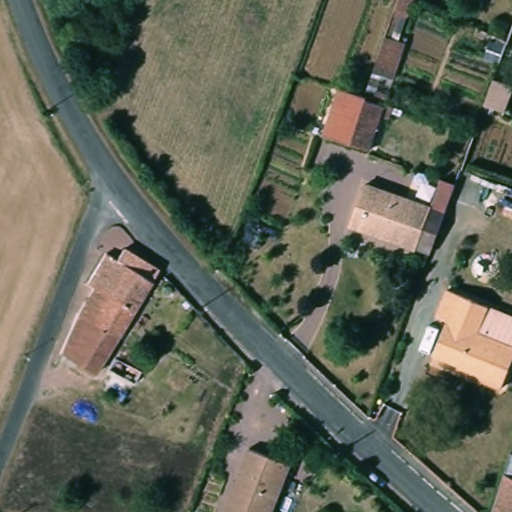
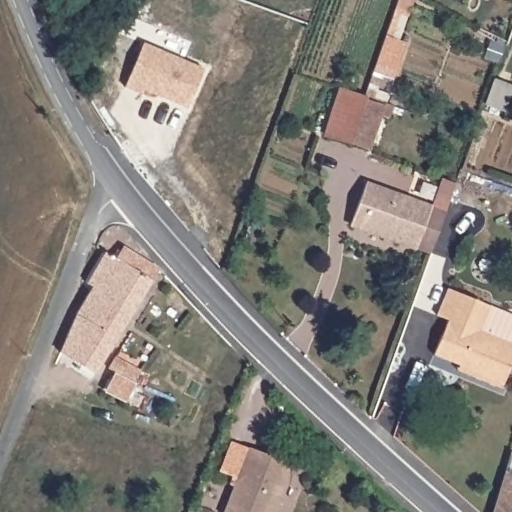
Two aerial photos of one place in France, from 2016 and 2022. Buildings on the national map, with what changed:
new [(124,88),(144,43),(205,69),(187,110),(142,90),(140,95),(124,88)]
unchanged [(352,141),(328,132),(345,87),(367,95),(370,96),(369,99),(388,105),(372,149),(355,142),(352,141)]
unchanged [(366,185),(447,211),(433,248),(432,253),(352,227),(366,185)]
unchanged [(64,356),(79,316),(95,287),(89,284),(105,254),(117,259),(122,249),(157,268),(99,377),(64,356)]
unchanged [(512,344),(512,365),(502,387),(464,372),(466,367),(434,354),(447,320),(437,316),(449,288),(491,305),(480,331),(512,344)]
unchanged [(512,314),(512,344),(480,331),(491,305),(512,314)]
unchanged [(146,373),(140,385),(115,372),(122,360),(146,373)]
unchanged [(290,481),(275,512),(225,512),(241,477),(253,450),(295,468),(290,481)]
unchanged [(512,471),(512,512),(491,512),(505,468),(512,471)]

